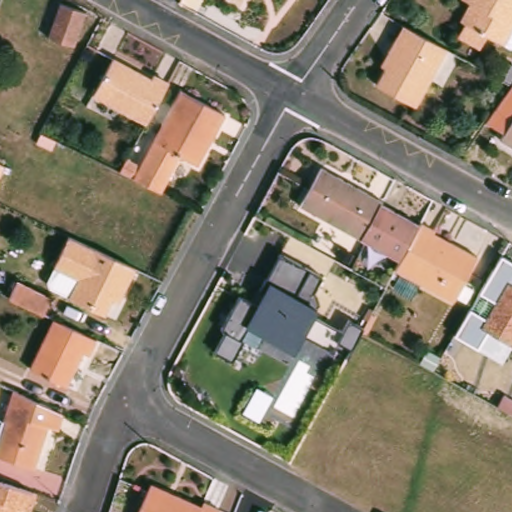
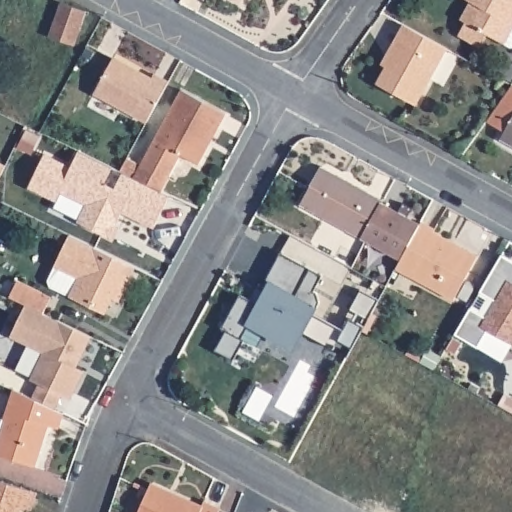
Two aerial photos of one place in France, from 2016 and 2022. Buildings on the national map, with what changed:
unchanged [(233,0),(244,0),(241,5),(233,0)]
unchanged [(497,45),(487,40),(481,52),(459,41),(468,26),(462,23),(471,7),(460,1),(461,0),(512,0),(512,35),(504,50),(497,45)]
unchanged [(71,47),(47,39),(60,5),(85,12),(71,47)]
unchanged [(373,85),(382,69),(378,66),(384,53),(399,26),(444,50),(412,107),(373,85)]
unchanged [(94,94),(114,60),(150,80),(154,75),(169,83),(146,123),(94,94)]
unchanged [(200,165),(156,141),(179,92),(227,118),(200,165)]
unchanged [(501,142),(512,121),(512,148),(501,142)]
unchanged [(161,194),(121,171),(128,160),(143,167),(156,141),(180,155),(161,194)]
new [(121,213),(116,226),(119,228),(113,240),(78,223),(85,206),(59,194),(55,201),(29,188),(44,155),(70,168),(78,152),(110,169),(105,184),(115,189),(123,172),(161,194),(168,197),(153,229),(121,213)]
unchanged [(0,164),(3,166),(0,172),(0,164)]
unchanged [(363,238),(303,205),(323,167),(382,200),(379,205),(419,226),(401,260),(363,238)]
unchanged [(436,230),(433,235),(452,246),(453,244),(477,258),(446,315),(388,283),(401,260),(419,226),(421,222),(436,230)]
unchanged [(131,289),(125,286),(109,319),(60,295),(69,277),(81,283),(96,251),(139,272),(131,289)]
unchanged [(339,340),(333,350),(303,337),(294,353),(260,335),(253,348),(240,342),(229,360),(215,353),(227,330),(223,327),(239,294),(255,302),(280,254),(322,276),(314,291),(313,306),(318,310),(316,315),(340,327),(347,316),(364,325),(352,347),(339,340)]
unchanged [(512,264),(512,348),(503,362),(454,336),(499,257),(512,264)]
unchanged [(14,285),(46,300),(40,315),(6,299),(14,285)]
unchanged [(92,357),(85,354),(69,387),(33,370),(57,321),(99,341),(92,357)]
unchanged [(14,392),(64,417),(59,431),(48,428),(33,470),(0,459),(0,420),(4,421),(14,392)]
unchanged [(20,510),(19,512),(0,512),(0,482),(36,493),(30,512),(20,510)]
unchanged [(202,511),(204,505),(219,510),(218,512),(142,512),(151,490),(202,511)]

